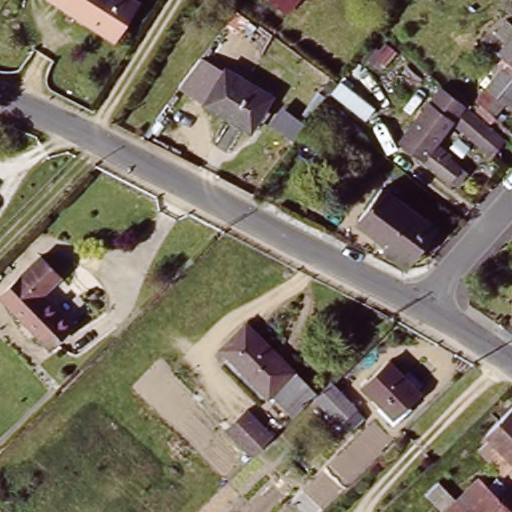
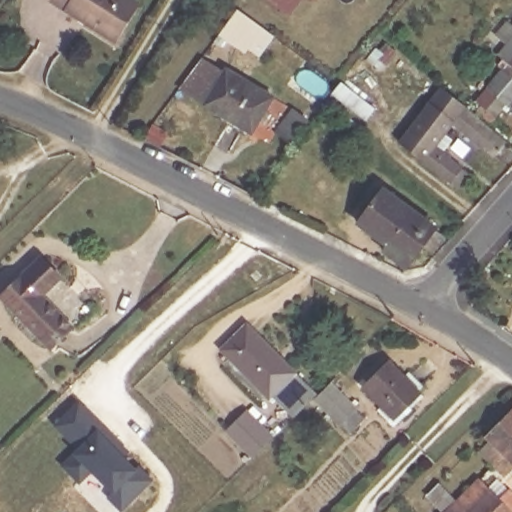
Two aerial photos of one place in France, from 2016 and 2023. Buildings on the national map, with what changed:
unchanged [(142,6),(119,42),(90,25),(50,0),(132,0),(142,6)]
unchanged [(297,7),(288,0),(302,0),(297,7)]
unchanged [(512,43),(512,53),(507,49),(512,43)]
unchanged [(512,53),(512,62),(507,58),(512,53)]
unchanged [(505,112),(500,118),(485,105),(490,100),(484,95),(512,62),(512,100),(503,111),(505,112)]
unchanged [(256,121),(249,134),(202,107),(223,71),(270,99),(262,110),(267,114),(261,124),(256,121)]
unchanged [(408,137),(449,84),(473,100),(512,134),(512,137),(500,152),(461,118),(442,139),(470,163),(476,168),(465,181),(459,176),(408,137)]
unchanged [(414,261),(392,245),(396,239),(366,216),(391,182),(442,221),(441,224),(449,230),(438,244),(431,238),(414,261)]
unchanged [(62,278),(43,296),(73,328),(52,350),(2,297),(43,258),(62,278)]
unchanged [(271,399),(223,351),(248,326),(296,373),(271,399)]
unchanged [(412,410),(394,427),(378,411),(383,407),(365,389),(390,363),(421,394),(408,406),(412,410)]
unchanged [(309,387),(287,409),(276,398),(298,376),(309,387)]
unchanged [(365,425),(350,440),(315,405),(331,390),(365,425)]
new [(124,512),(110,498),(116,494),(96,476),(85,485),(66,466),(78,457),(73,452),(77,445),(55,426),(82,400),(131,452),(129,459),(141,470),(143,466),(156,480),(124,512)]
unchanged [(226,430),(247,408),(275,434),(253,457),(226,430)]
unchanged [(488,445),(494,437),(490,434),(495,430),(494,429),(512,411),(512,468),(502,458),(488,445)]
unchanged [(505,473),(512,480),(512,512),(447,512),(452,507),(434,488),(446,476),(465,495),(488,472),(497,482),(505,473)]

